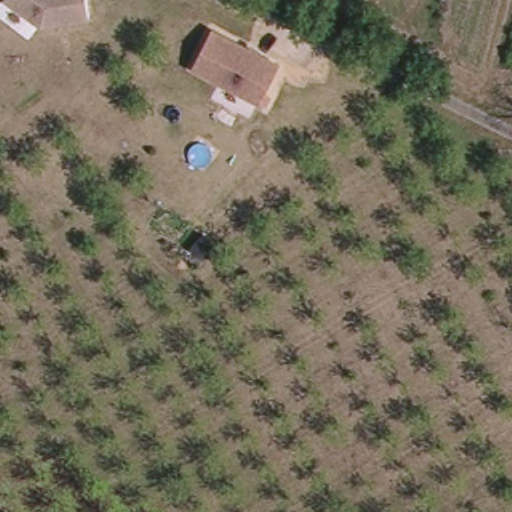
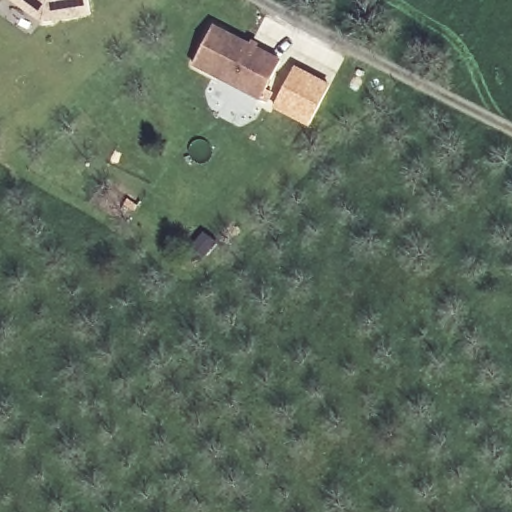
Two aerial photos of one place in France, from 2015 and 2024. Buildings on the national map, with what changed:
unchanged [(40,22),(11,1),(10,0),(86,0),(89,15),(40,22)]
unchanged [(280,62),(260,100),(192,65),(212,27),(280,62)]
new [(294,63),(331,84),(307,127),(270,106),(294,63)]

